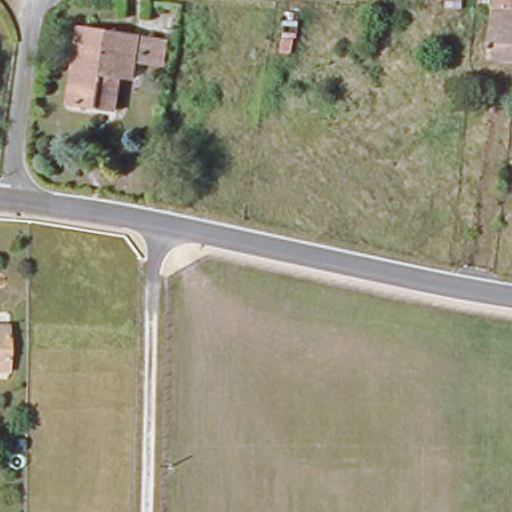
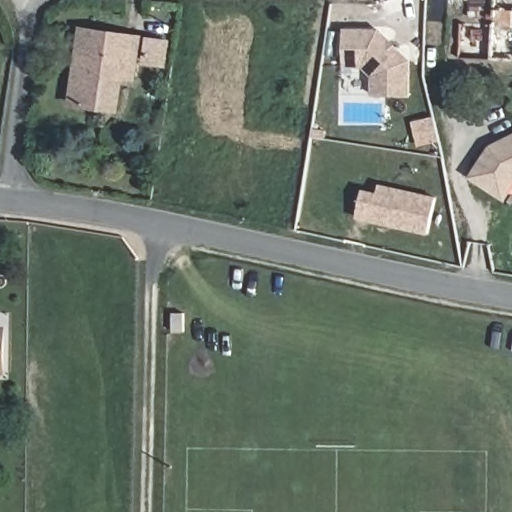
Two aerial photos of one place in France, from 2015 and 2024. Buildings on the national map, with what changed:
unchanged [(443,10),(443,0),(457,0),(456,10),(443,10)]
unchanged [(487,62),(489,0),(512,0),(512,63),(487,62)]
demolished [(275,38),(281,38),(284,23),(298,24),(295,39),(294,41),(291,56),(274,54),(275,38)]
new [(378,30),(399,50),(409,60),(409,95),(373,95),(372,76),(363,67),(344,68),(343,30),(378,30)]
unchanged [(100,111),(69,107),(79,31),(111,36),(138,39),(136,50),(133,82),(121,80),(116,113),(100,111)]
unchanged [(163,62),(144,59),(146,40),(165,44),(163,62)]
new [(493,190),(473,179),(491,148),(510,138),(512,137),(512,187),(506,197),(493,190)]
new [(357,217),(362,190),(378,194),(379,185),(436,198),(429,232),(397,225),(386,223),(357,217)]
unchanged [(1,369),(0,369),(0,327),(1,327),(1,369)]

